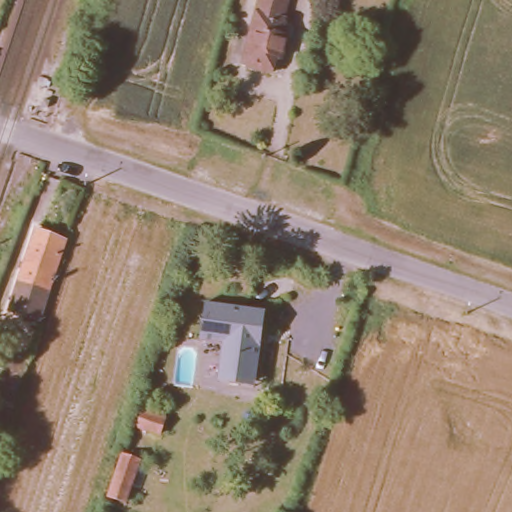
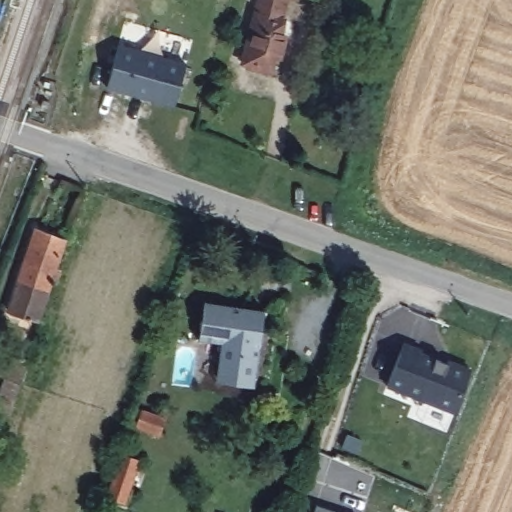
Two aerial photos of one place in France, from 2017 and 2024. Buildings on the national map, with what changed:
unchanged [(279,35),(273,56),(268,55),(264,73),(235,64),(251,0),(272,0),(265,31),(279,35)]
new [(187,66),(175,108),(109,89),(119,48),(187,66)]
unchanged [(34,230),(65,241),(40,319),(7,308),(34,230)]
unchanged [(259,310),(250,378),(214,373),(218,341),(196,337),(201,302),(259,310)]
new [(420,349),(447,360),(448,357),(470,366),(453,408),(387,382),(403,339),(422,346),(420,349)]
unchanged [(29,366),(7,434),(0,431),(0,380),(7,360),(29,366)]
unchanged [(158,419),(153,432),(132,425),(136,412),(158,419)]
unchanged [(117,454),(145,463),(132,506),(103,496),(117,454)]
new [(335,512),(315,512),(317,506),(335,512)]

